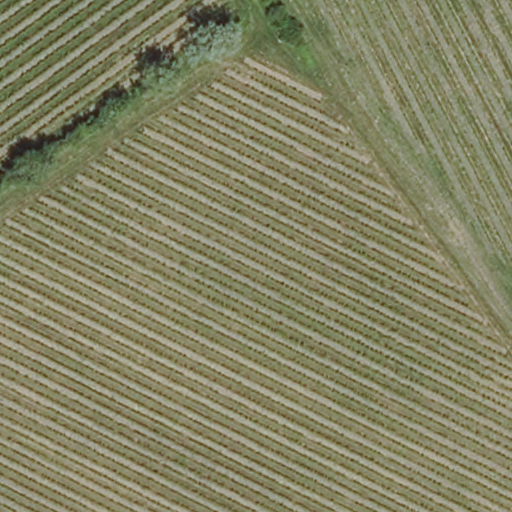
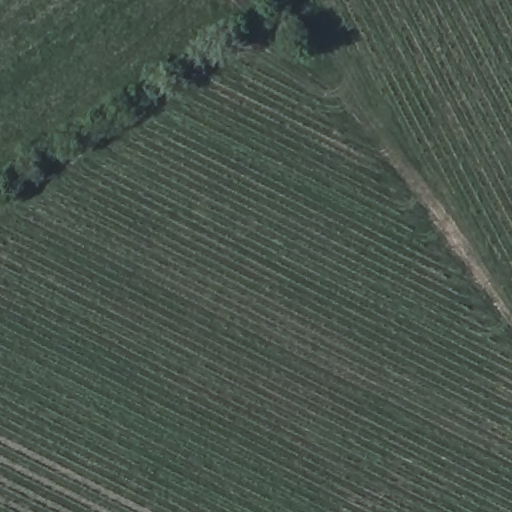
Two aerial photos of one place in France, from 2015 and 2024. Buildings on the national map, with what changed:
[]

